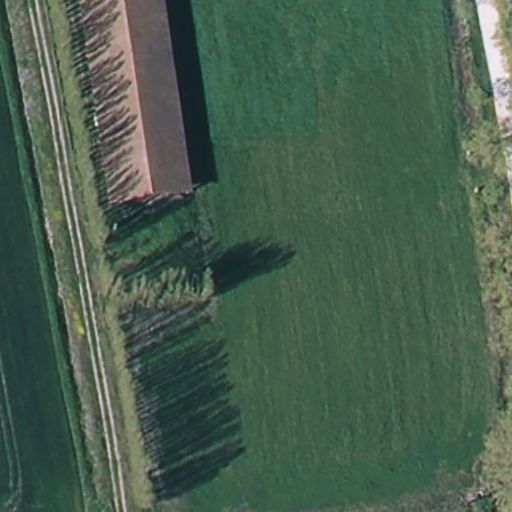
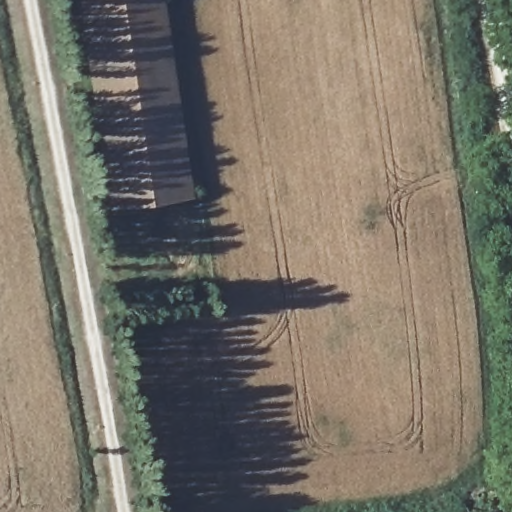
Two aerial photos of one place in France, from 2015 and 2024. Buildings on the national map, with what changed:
unchanged [(193,220),(114,232),(75,0),(154,0),(193,220)]

